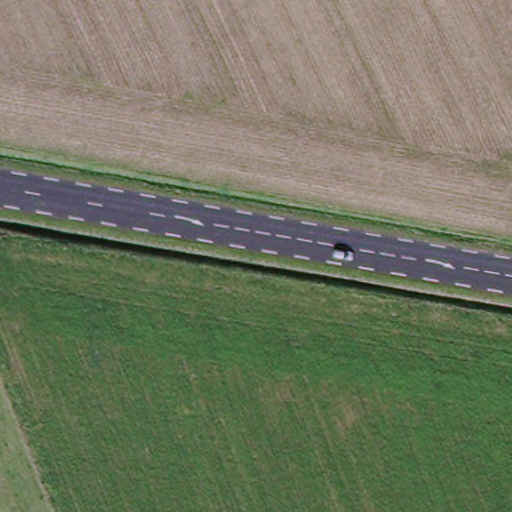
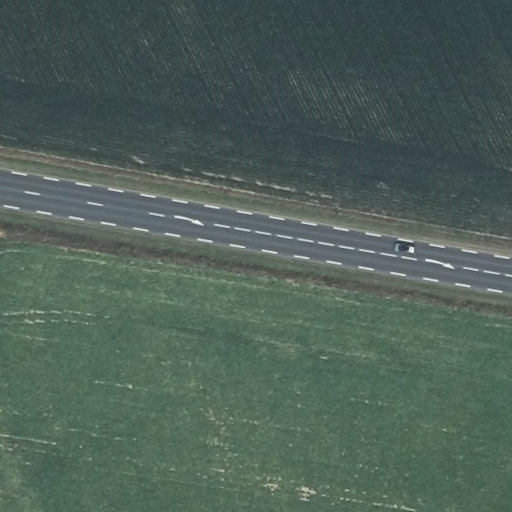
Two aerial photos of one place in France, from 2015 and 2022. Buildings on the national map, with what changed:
[]

